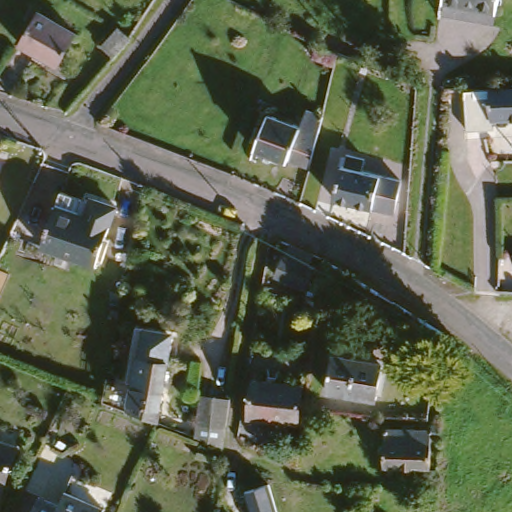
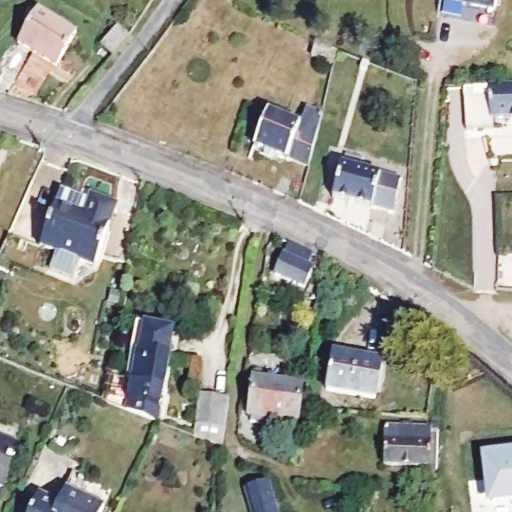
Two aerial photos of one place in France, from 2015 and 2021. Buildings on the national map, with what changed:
unchanged [(444,4),(439,3),(440,0),(497,0),(496,11),(444,4)]
unchanged [(35,14),(75,37),(56,70),(16,47),(35,14)]
unchanged [(114,57),(110,52),(103,47),(119,26),(126,33),(130,37),(114,57)]
unchanged [(319,44),(340,54),(334,67),(313,57),(319,44)]
unchanged [(364,62),(373,66),(370,74),(361,71),(364,62)]
unchanged [(512,89),(512,122),(487,122),(480,123),(479,90),(512,89)]
unchanged [(288,156),(287,159),(273,152),(270,158),(262,155),(265,150),(254,145),(270,109),(301,122),(307,107),(325,115),(311,166),(288,156)]
unchanged [(342,172),(344,173),(347,162),(365,167),(362,177),(399,187),(390,221),(333,206),(342,172)]
unchanged [(46,261),(50,253),(35,247),(57,192),(78,201),(89,205),(91,200),(112,209),(88,268),(59,257),(56,265),(46,261)]
unchanged [(309,262),(305,271),(309,272),(300,292),(271,280),(285,251),(309,262)]
unchanged [(127,412),(140,352),(142,353),(147,332),(166,337),(162,357),(171,359),(157,424),(127,412)]
unchanged [(329,361),(378,370),(371,407),(322,397),(329,361)]
unchanged [(253,375),(302,382),(297,420),(247,413),(253,375)]
unchanged [(194,434),(203,390),(229,396),(220,444),(194,434)]
unchanged [(425,475),(380,472),(382,447),(389,447),(390,434),(380,433),(380,426),(393,427),(392,435),(428,437),(425,475)]
unchanged [(2,490),(0,489),(0,444),(14,448),(2,490)]
new [(512,447),(512,499),(493,501),(490,478),(486,478),(483,450),(512,447)]
unchanged [(274,478),(282,512),(257,512),(249,484),(274,478)]
unchanged [(37,497),(57,507),(63,492),(102,511),(102,512),(30,512),(37,497)]

